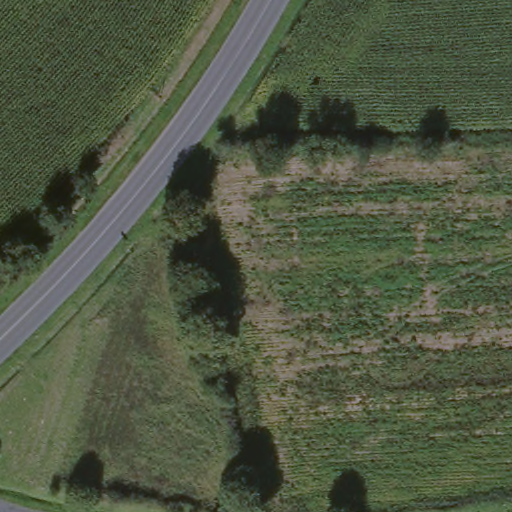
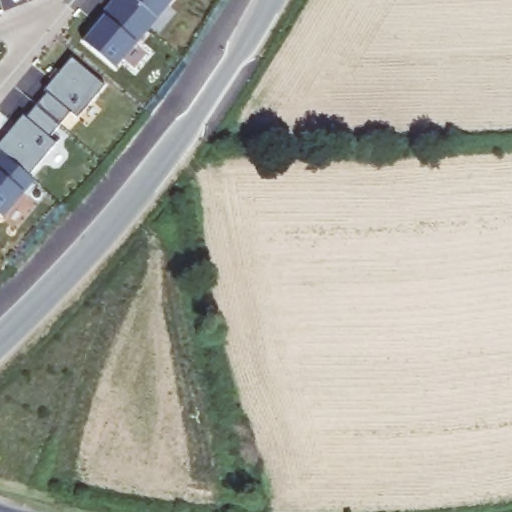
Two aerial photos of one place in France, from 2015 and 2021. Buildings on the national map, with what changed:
new [(86,42),(117,5),(121,0),(174,0),(157,19),(148,31),(138,43),(117,68),(86,42)]
new [(48,93),(45,90),(73,58),(107,86),(79,119),(72,113),(61,125),(38,105),(48,93)]
new [(0,144),(24,115),(27,118),(38,105),(61,125),(51,138),(58,144),(30,177),(35,181),(25,194),(4,219),(0,216),(0,160),(5,155),(0,151),(0,144)]

